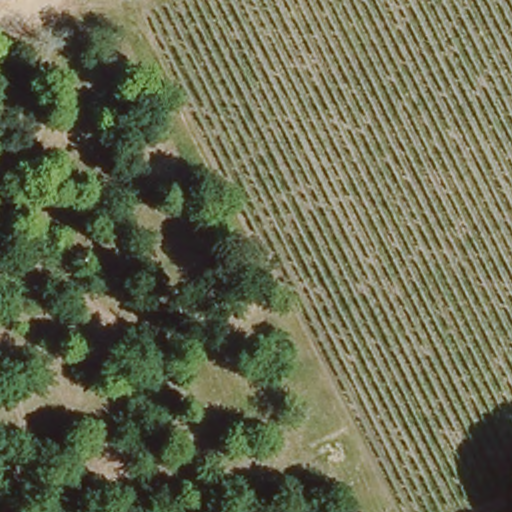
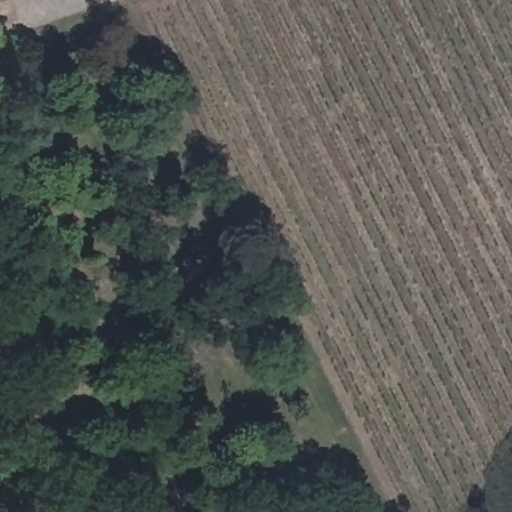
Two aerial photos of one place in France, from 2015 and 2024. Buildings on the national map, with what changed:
unchanged [(0,0),(4,0),(0,1),(0,0)]

